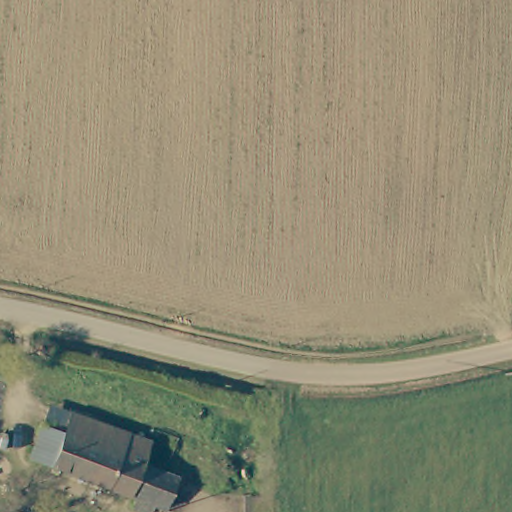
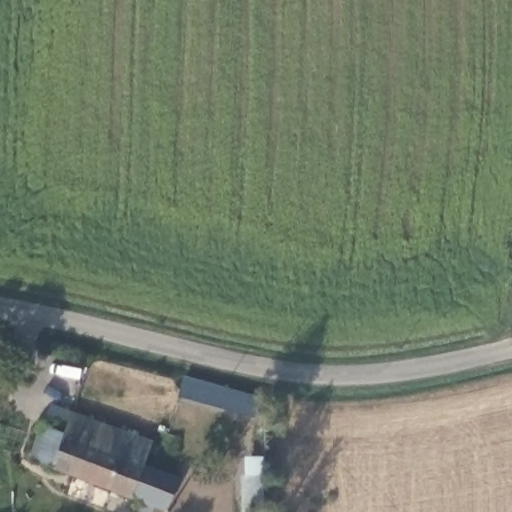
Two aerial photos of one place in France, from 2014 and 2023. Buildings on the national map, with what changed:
unchanged [(167,504),(161,502),(156,507),(151,504),(149,510),(145,508),(134,504),(138,494),(32,454),(46,423),(67,431),(76,409),(153,440),(145,459),(162,467),(179,474),(167,504)]

